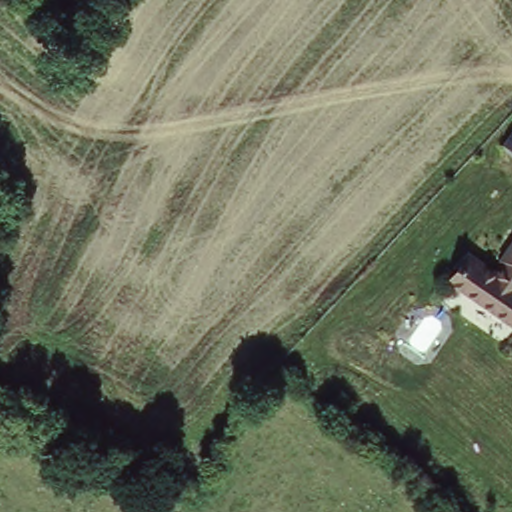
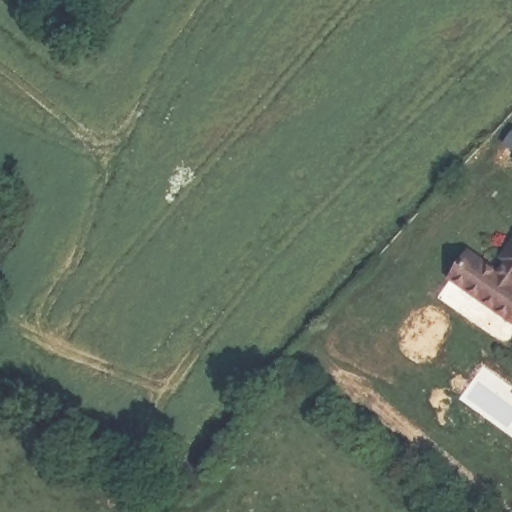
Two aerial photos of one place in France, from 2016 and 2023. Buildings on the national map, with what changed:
unchanged [(505,320),(448,284),(452,280),(445,275),(464,251),(492,266),(512,239),(512,317),(510,315),(505,320)]

